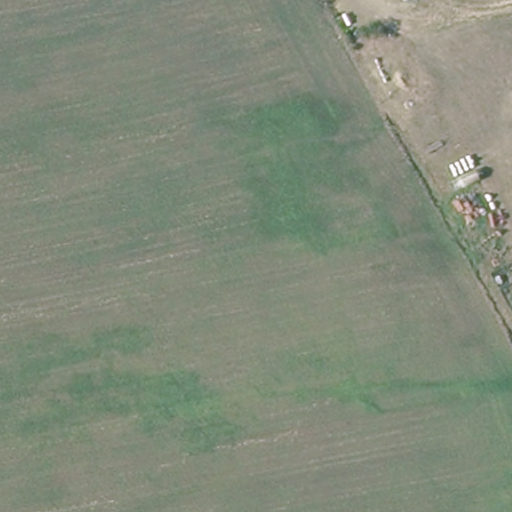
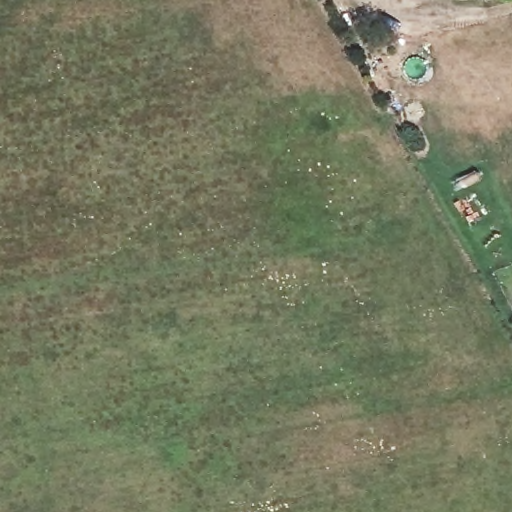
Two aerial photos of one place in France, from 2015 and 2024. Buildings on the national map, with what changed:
[]

